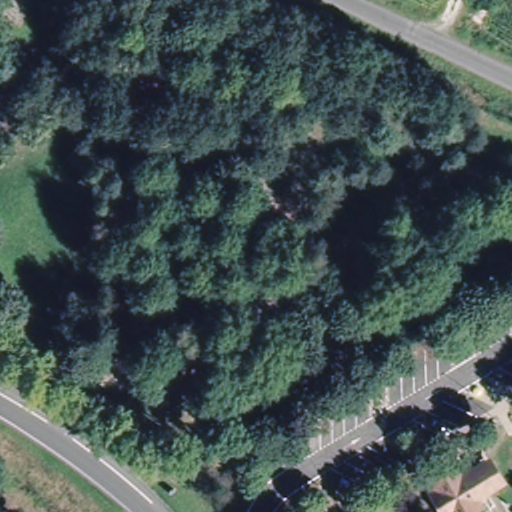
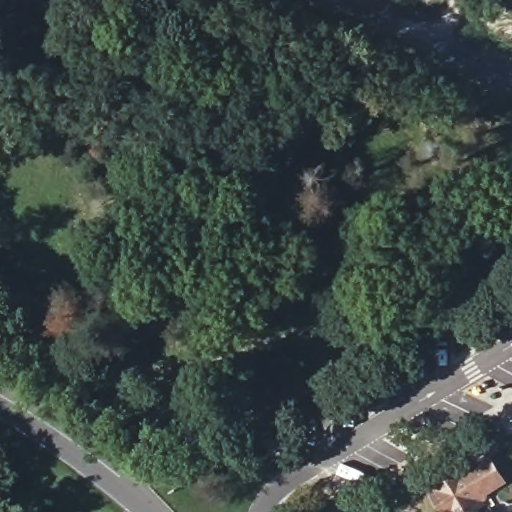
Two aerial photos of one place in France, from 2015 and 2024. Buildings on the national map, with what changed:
unchanged [(464,467),(468,474),(495,460),(511,489),(485,502),(487,508),(481,512),(436,512),(427,495),(433,483),(464,467)]

